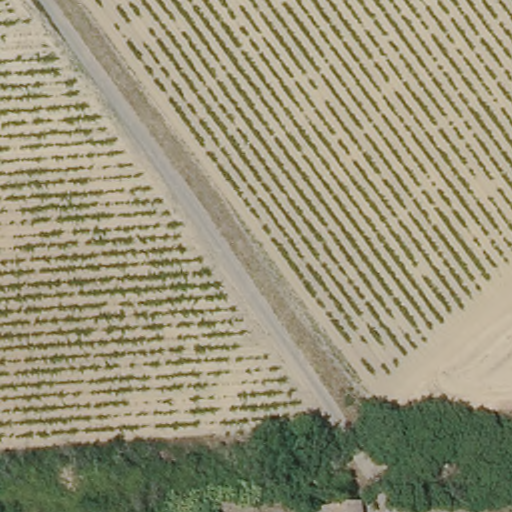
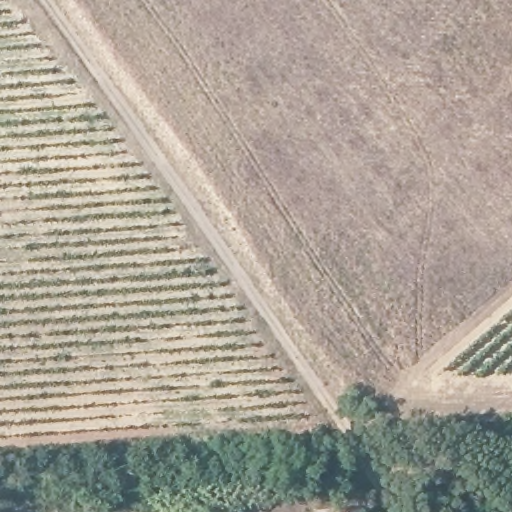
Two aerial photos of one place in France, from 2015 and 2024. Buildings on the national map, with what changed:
unchanged [(329,512),(330,504),(337,504),(337,490),(365,491),(365,512),(329,512)]

